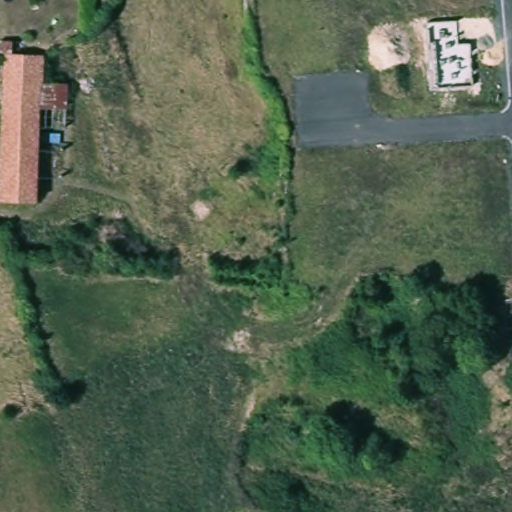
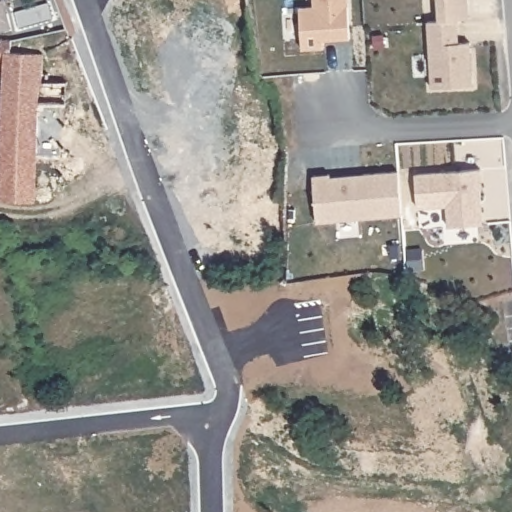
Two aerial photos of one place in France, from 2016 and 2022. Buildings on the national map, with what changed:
new [(299,7),(312,6),(312,0),(348,0),(350,39),(325,41),(325,49),(302,51),(299,7)]
new [(436,0),(468,0),(470,21),(457,22),(437,22),(436,0)]
unchanged [(436,87),(430,22),(457,22),(459,44),(470,43),(473,84),(436,87)]
unchanged [(0,199),(0,130),(6,75),(0,74),(0,49),(2,50),(3,37),(16,37),(15,51),(47,53),(44,83),(68,86),(66,109),(40,106),(30,177),(27,202),(0,199)]
new [(415,174),(482,169),(483,190),(480,190),(482,224),(447,227),(446,207),(417,209),(415,174)]
new [(312,175),(331,172),(331,176),(398,171),(402,217),(317,222),(312,175)]
demolished [(7,406),(24,402),(17,381),(40,374),(49,420),(11,428),(7,406)]

